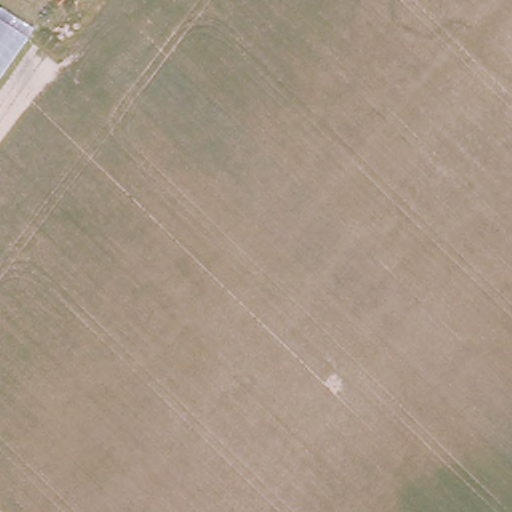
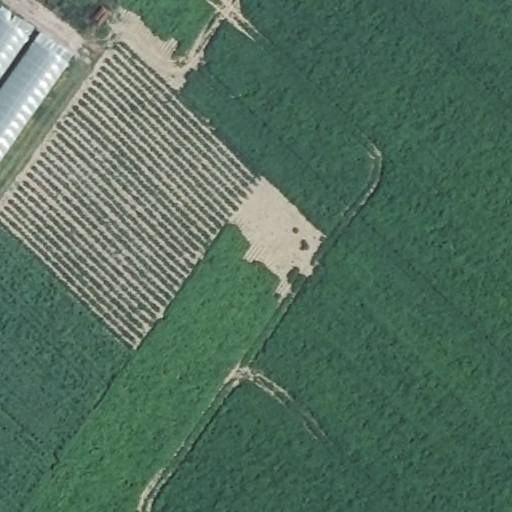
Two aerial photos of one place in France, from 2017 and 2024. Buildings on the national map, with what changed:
new [(0,81),(0,21),(28,40),(0,81)]
new [(0,165),(0,94),(35,45),(67,67),(0,165)]

